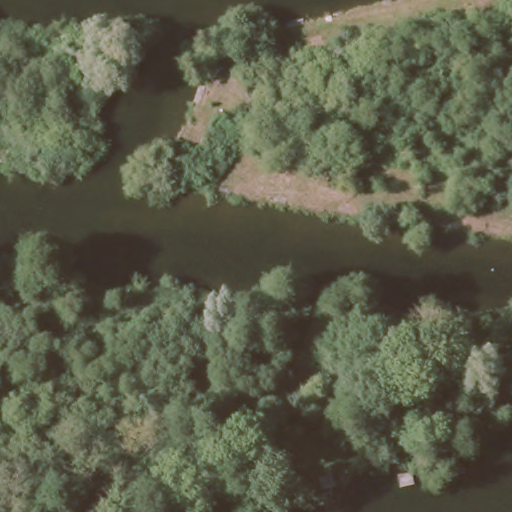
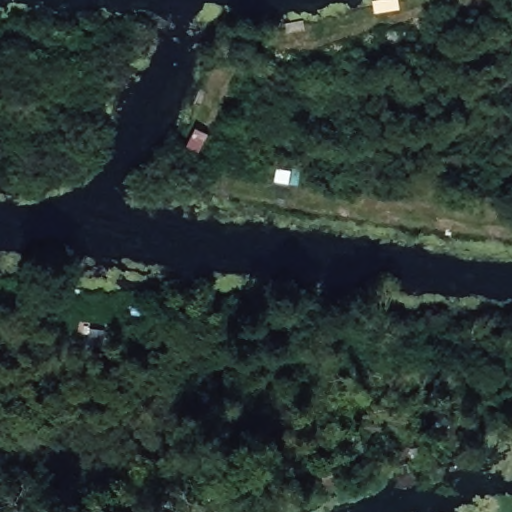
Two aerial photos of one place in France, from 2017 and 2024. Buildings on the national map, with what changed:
[]

